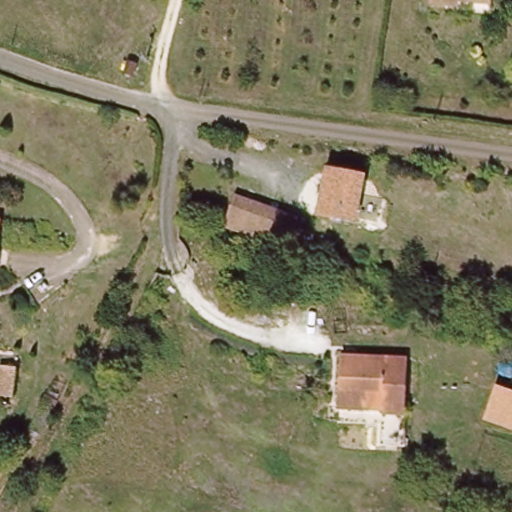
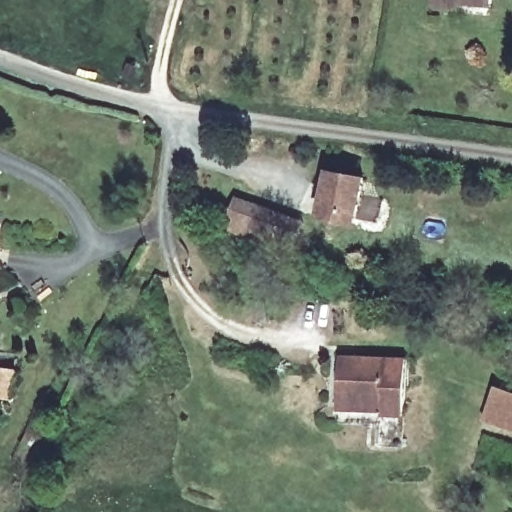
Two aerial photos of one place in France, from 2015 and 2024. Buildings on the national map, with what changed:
unchanged [(425,9),(426,0),(487,0),(486,10),(453,7),(452,12),(444,11),(425,9)]
unchanged [(327,170),(363,177),(355,222),(318,215),(327,170)]
unchanged [(272,244),(223,226),(234,196),(282,214),(303,222),(292,251),(272,244)]
unchanged [(398,446),(375,445),(375,424),(331,422),(335,356),(402,359),(398,446)]
unchanged [(16,370),(14,397),(0,396),(0,377),(1,368),(16,370)]
unchanged [(482,420),(494,385),(512,391),(512,431),(482,420)]

